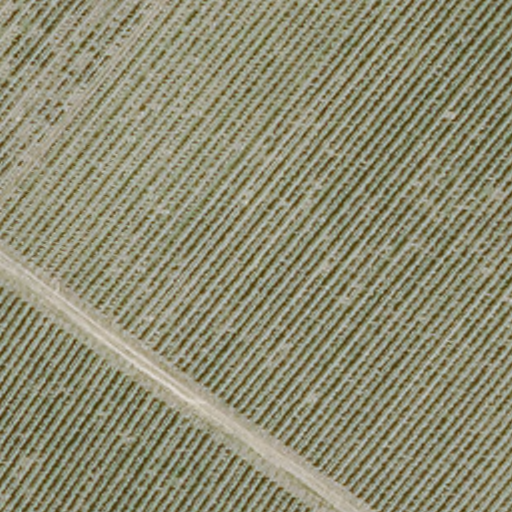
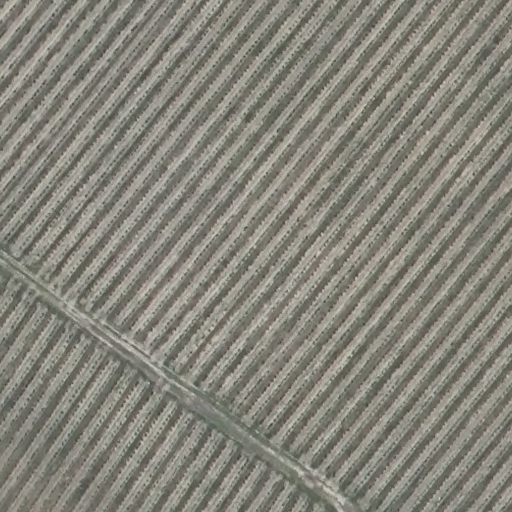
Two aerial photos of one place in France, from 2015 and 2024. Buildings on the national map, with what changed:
[]

